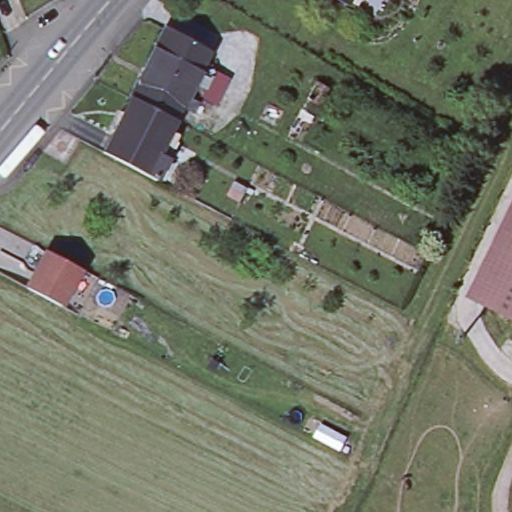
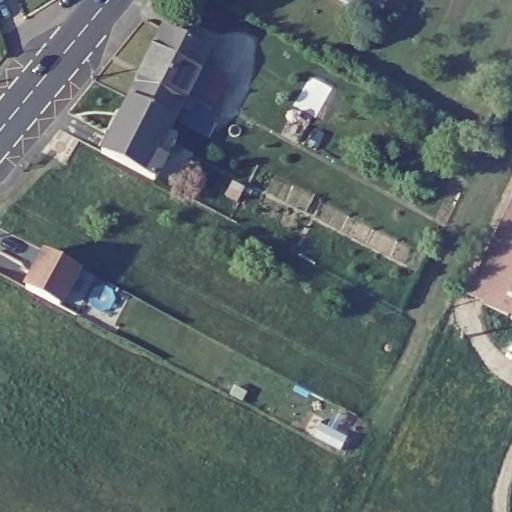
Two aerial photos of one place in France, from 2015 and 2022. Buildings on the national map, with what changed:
unchanged [(342,0),(356,0),(352,6),(342,0)]
unchanged [(212,50),(205,62),(215,66),(192,108),(184,104),(177,119),(132,95),(167,27),(212,50)]
unchanged [(326,86),(317,103),(306,97),(317,80),(326,86)]
unchanged [(177,119),(172,128),(180,132),(156,178),(103,150),(132,95),(177,119)]
unchanged [(469,297),(512,205),(512,318),(469,297)]
unchanged [(84,270),(62,310),(22,288),(43,248),(84,270)]

